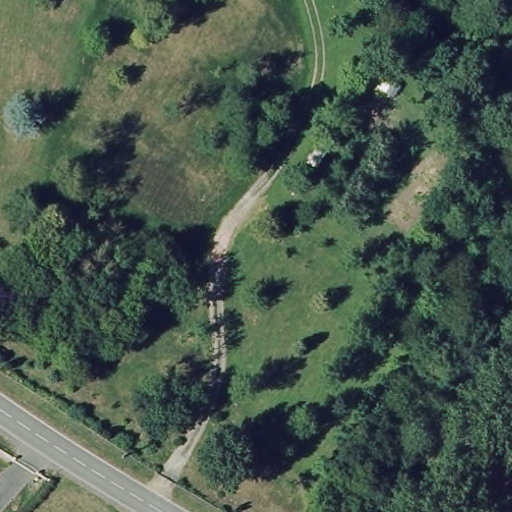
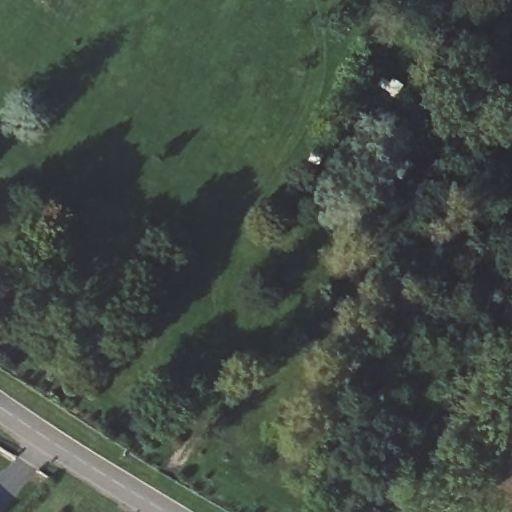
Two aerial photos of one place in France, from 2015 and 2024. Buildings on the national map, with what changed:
[]

